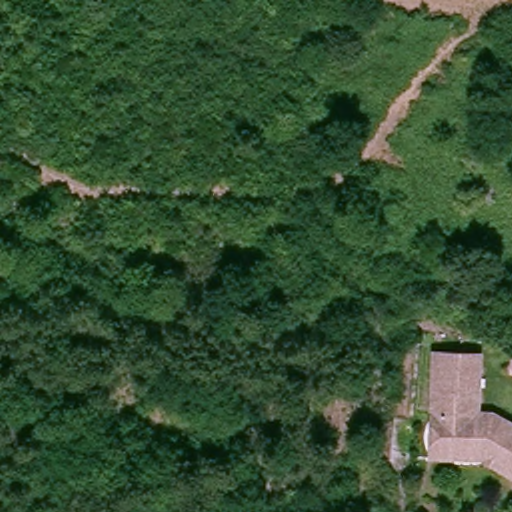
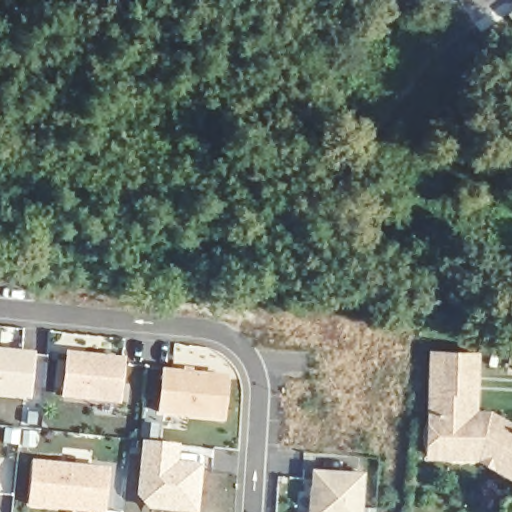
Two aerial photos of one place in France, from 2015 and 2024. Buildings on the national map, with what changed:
unchanged [(418,439),(423,398),(431,337),(474,343),(467,401),(474,401),(512,421),(512,469),(482,452),(471,445),(418,439)]
new [(0,348),(34,352),(31,399),(0,396),(0,348)]
new [(67,351),(125,356),(120,402),(62,398),(67,351)]
new [(157,414),(162,368),(230,375),(225,421),(157,414)]
new [(148,510),(137,495),(142,440),(180,445),(179,461),(203,463),(199,512),(174,512),(148,510)]
new [(33,460),(110,468),(106,512),(94,512),(27,506),(33,460)]
new [(313,467),(366,470),(364,512),(310,512),(313,467)]

